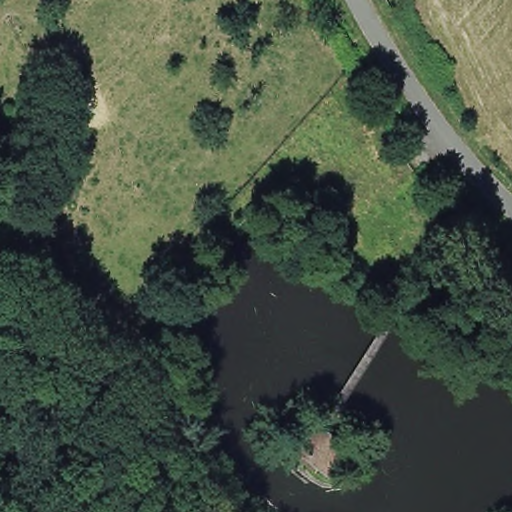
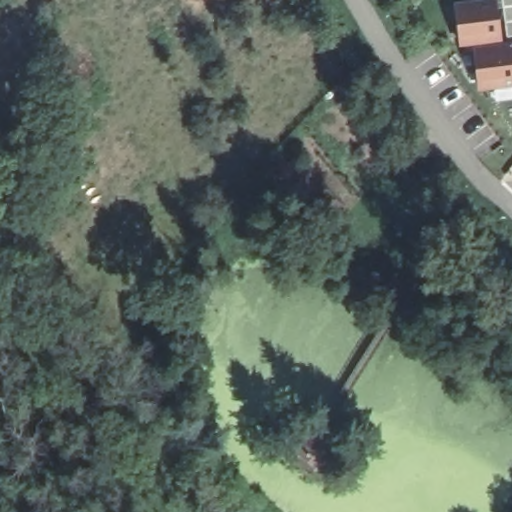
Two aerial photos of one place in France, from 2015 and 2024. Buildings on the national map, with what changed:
new [(472,0),(498,0),(503,41),(460,48),(455,3),(472,0)]
new [(503,0),(512,0),(512,36),(506,37),(503,0)]
new [(479,91),(475,47),(512,43),(512,88),(479,91)]
unchanged [(334,466),(327,474),(299,451),(315,432),(336,450),(343,456),(334,466)]

